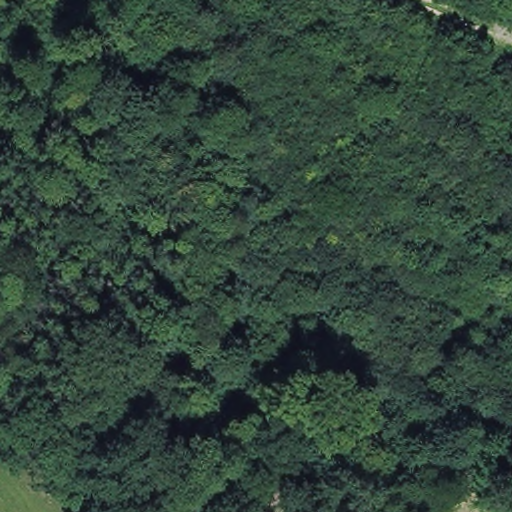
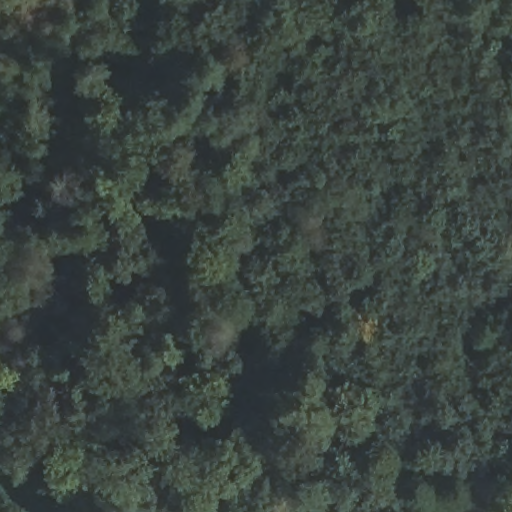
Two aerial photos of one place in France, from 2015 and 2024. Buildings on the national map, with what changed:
[]

